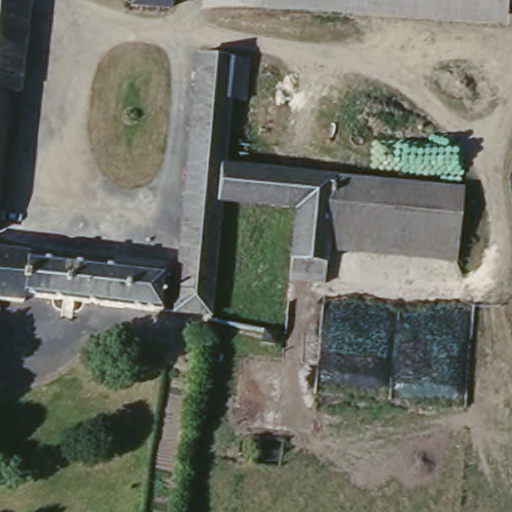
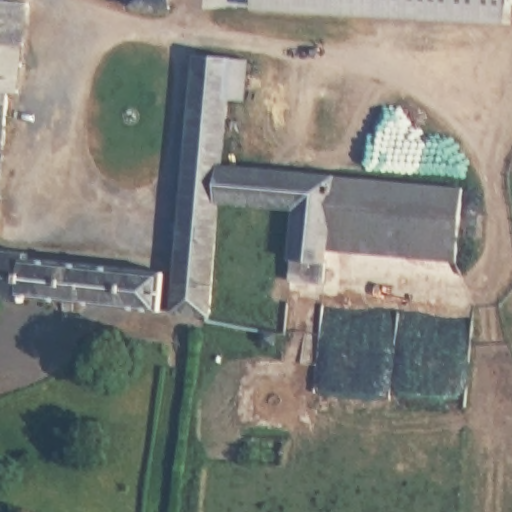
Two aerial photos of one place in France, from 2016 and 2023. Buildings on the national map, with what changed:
unchanged [(31,1),(27,41),(0,38),(0,0),(19,0),(31,1)]
unchanged [(167,7),(131,6),(131,0),(168,0),(167,7)]
unchanged [(505,26),(251,10),(252,0),(506,0),(505,26)]
unchanged [(12,92),(8,125),(4,126),(0,232),(0,38),(27,41),(23,93),(12,92)]
unchanged [(292,268),(293,259),(292,258),(295,209),(217,203),(209,321),(177,319),(195,55),(226,57),(242,57),(239,102),(225,101),(222,165),(330,174),(325,251),(324,259),(325,272),(292,268)]
unchanged [(462,186),(453,265),(325,251),(330,174),(462,186)]
unchanged [(25,256),(157,265),(156,308),(26,298),(20,301),(0,300),(0,248),(25,250),(25,256)]

